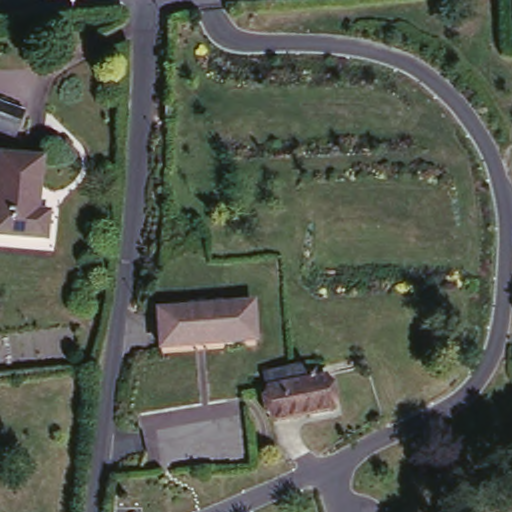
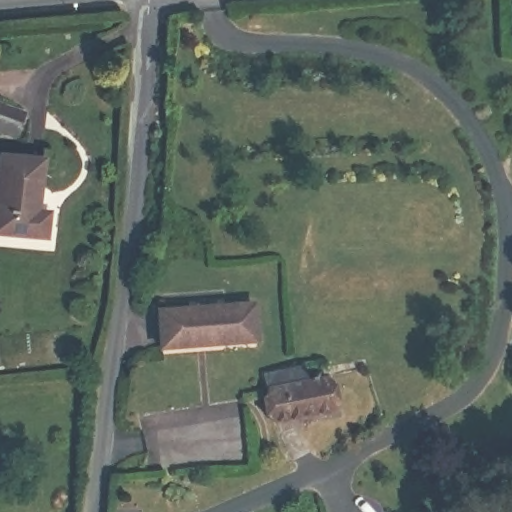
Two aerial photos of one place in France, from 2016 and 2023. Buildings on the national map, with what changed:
unchanged [(0,124),(0,99),(29,110),(20,131),(0,124)]
unchanged [(44,211),(40,235),(0,228),(0,152),(39,159),(32,209),(44,211)]
unchanged [(250,300),(252,336),(157,343),(155,305),(250,300)]
unchanged [(326,376),(333,410),(276,423),(265,376),(305,368),(307,381),(326,376)]

